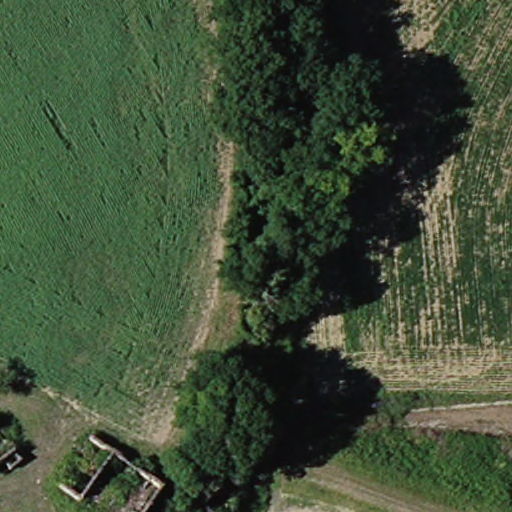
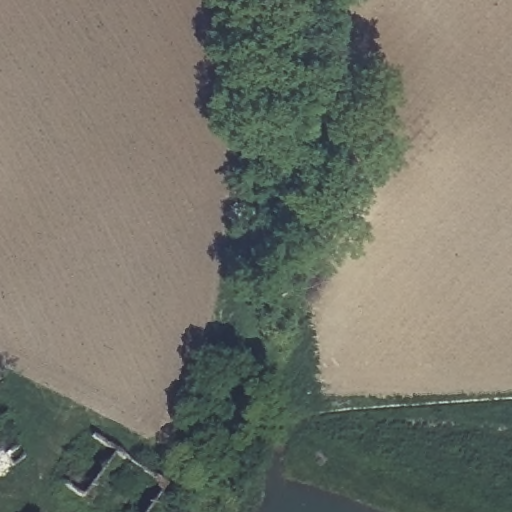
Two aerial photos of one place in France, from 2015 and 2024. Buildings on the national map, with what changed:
unchanged [(150,512),(105,512),(64,481),(98,434),(167,490),(150,512)]

